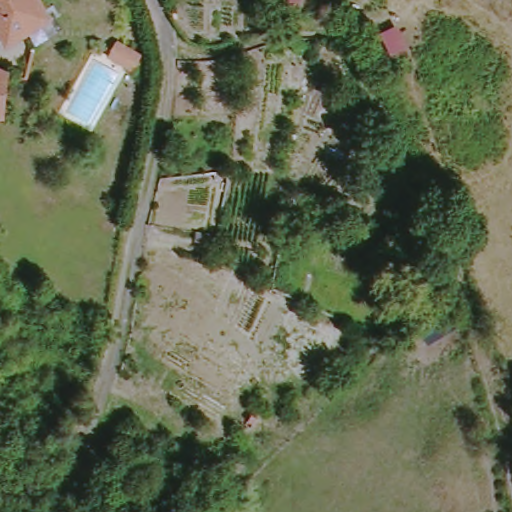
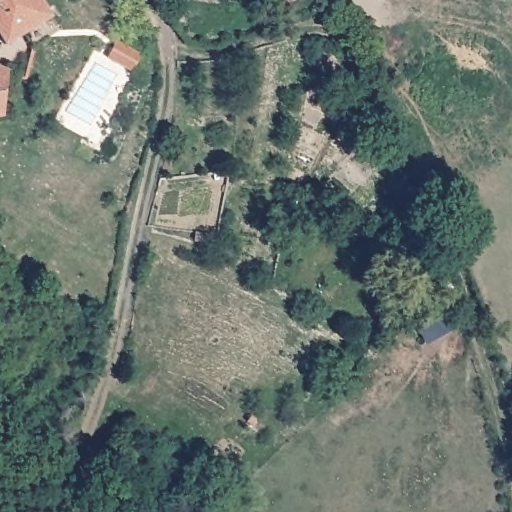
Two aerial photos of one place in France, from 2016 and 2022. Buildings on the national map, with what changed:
unchanged [(50,17),(4,44),(0,38),(0,0),(39,0),(50,17)]
unchanged [(4,63),(2,114),(0,114),(0,63),(4,63)]

